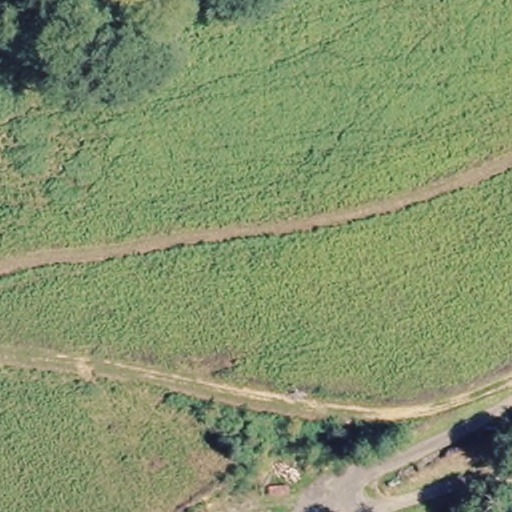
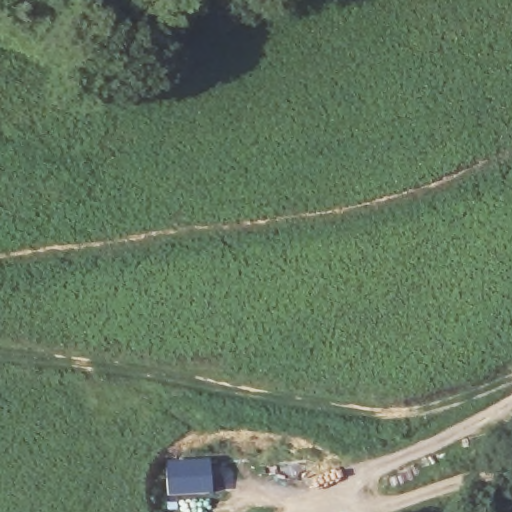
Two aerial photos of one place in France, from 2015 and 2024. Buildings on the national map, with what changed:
new [(211,495),(168,498),(165,462),(208,459),(211,495)]

